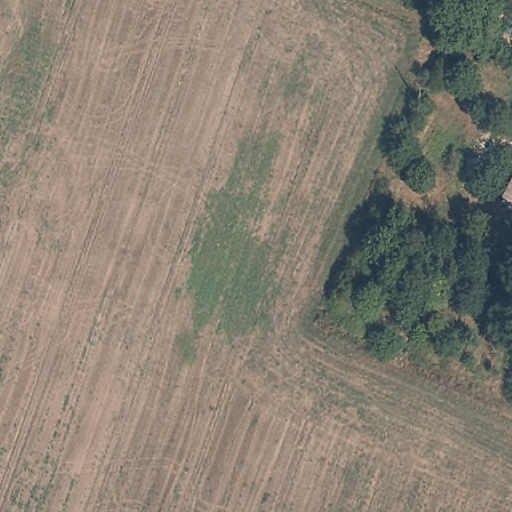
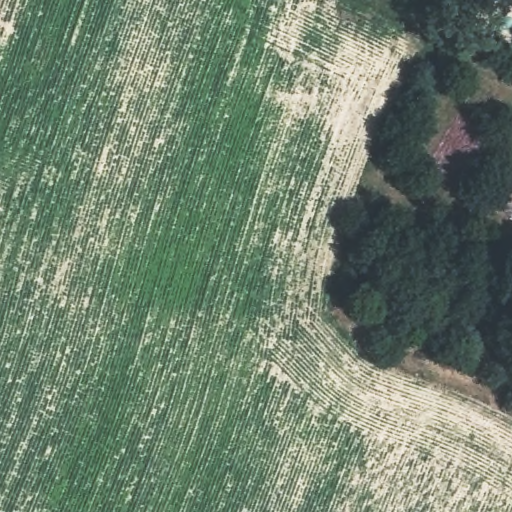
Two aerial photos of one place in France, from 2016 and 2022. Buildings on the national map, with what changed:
unchanged [(512,174),(512,204),(499,197),(509,178),(512,174)]

